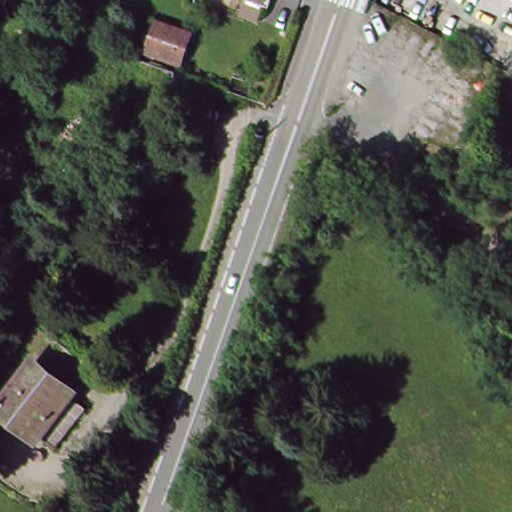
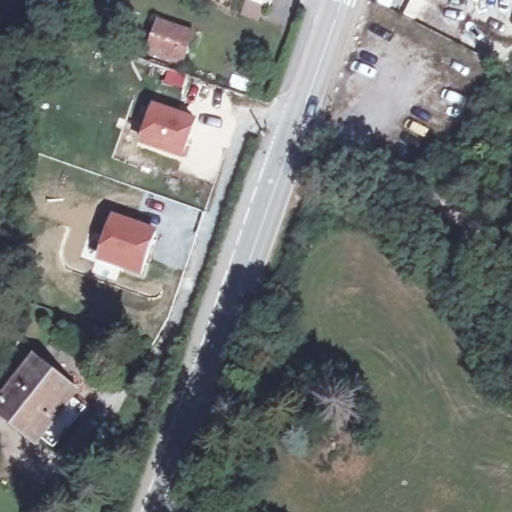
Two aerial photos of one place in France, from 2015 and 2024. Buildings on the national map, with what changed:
unchanged [(262,0),(267,0),(267,1),(262,0)]
unchanged [(198,32),(187,64),(150,50),(162,18),(198,32)]
new [(142,146),(155,105),(199,121),(185,161),(142,146)]
new [(102,260),(117,218),(155,232),(141,273),(102,260)]
unchanged [(63,394),(78,407),(47,443),(33,431),(28,435),(0,411),(0,396),(30,360),(66,390),(63,394)]

